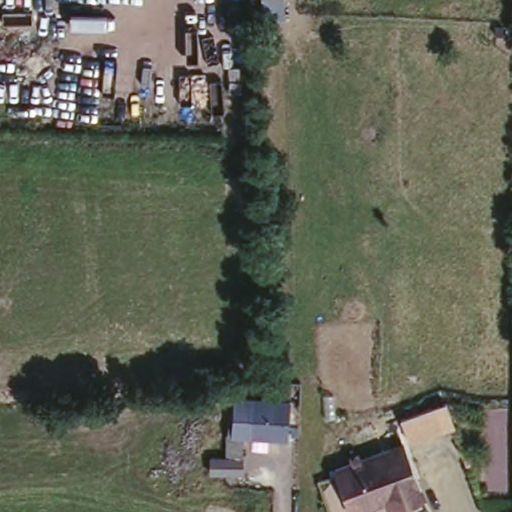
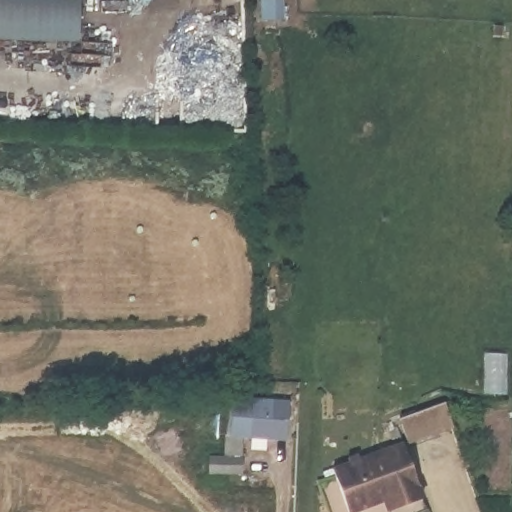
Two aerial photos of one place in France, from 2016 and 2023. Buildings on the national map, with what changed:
new [(77,43),(0,40),(0,0),(79,0),(77,43)]
new [(285,19),(260,21),(259,0),(284,0),(285,19)]
unchanged [(253,395),(288,396),(288,433),(251,431),(243,430),(244,467),(225,466),(210,466),(210,453),(227,454),(227,428),(232,393),(253,395)]
demolished [(400,420),(445,404),(453,425),(408,442),(400,420)]
unchanged [(386,500),(351,512),(335,470),(351,463),(350,458),(359,455),(361,460),(403,444),(423,497),(401,505),(388,509),(386,500)]

